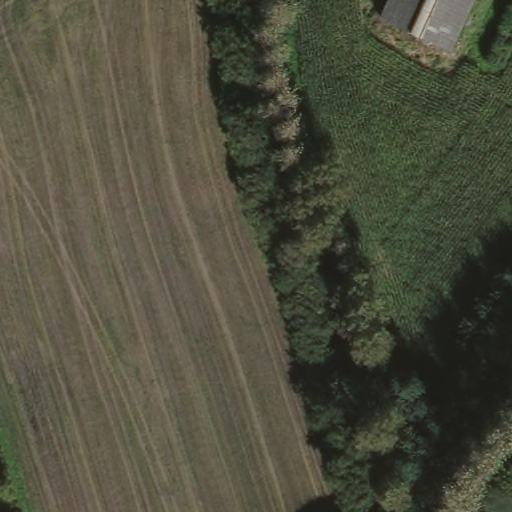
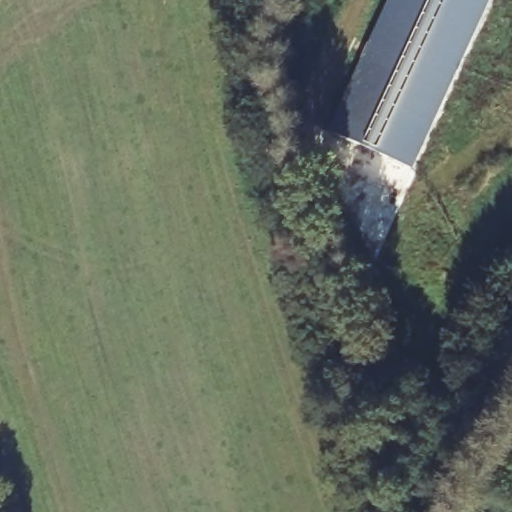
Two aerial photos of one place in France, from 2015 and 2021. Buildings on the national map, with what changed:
new [(489,0),(413,169),(331,132),(390,0),(489,0)]
demolished [(390,0),(477,0),(453,54),(381,21),(390,0)]

